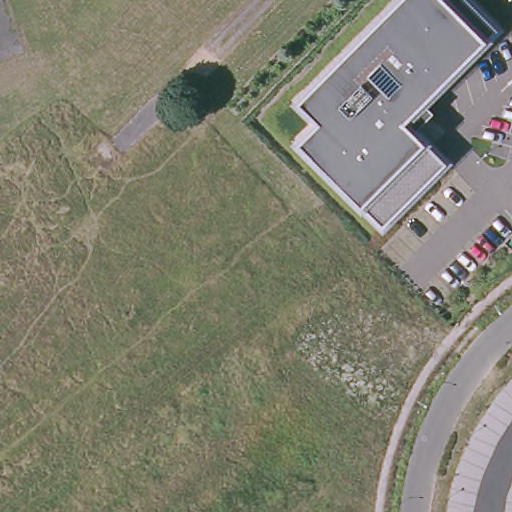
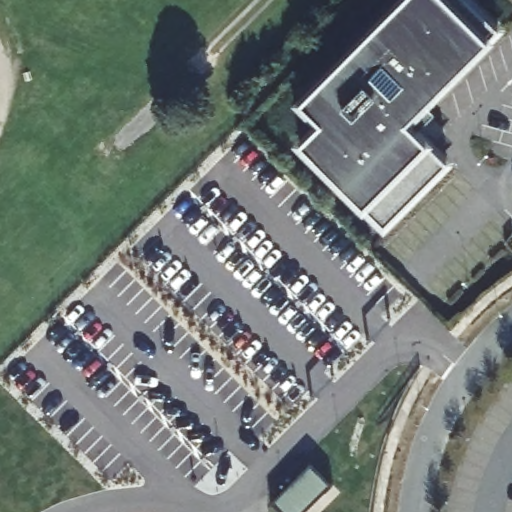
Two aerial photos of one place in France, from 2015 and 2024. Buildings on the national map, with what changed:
unchanged [(427,99),(437,110),(418,128),(450,159),(385,226),(300,142),(320,121),(296,99),(393,0),(473,0),(500,27),(427,99)]
new [(272,500),(310,462),(331,484),(302,512),(284,512),(272,500)]

